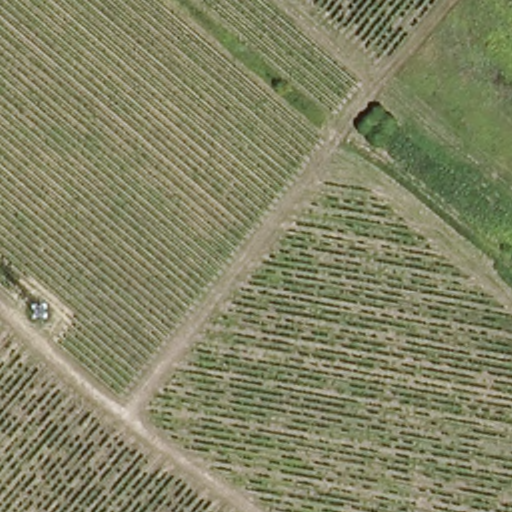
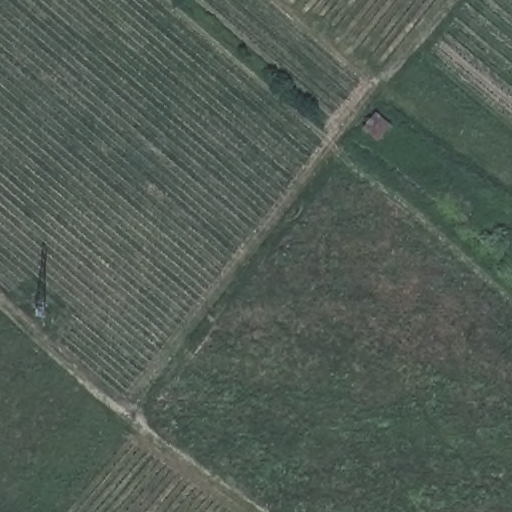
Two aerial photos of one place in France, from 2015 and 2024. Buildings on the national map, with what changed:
unchanged [(374,139),(357,125),(373,107),(389,124),(374,139)]

